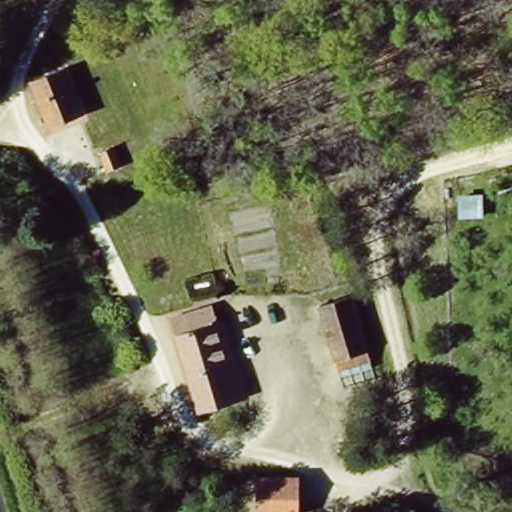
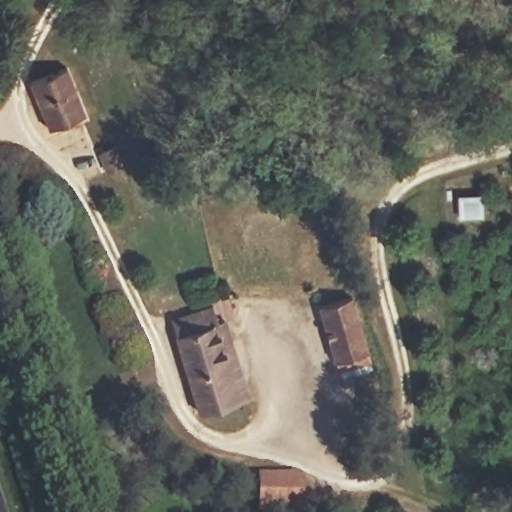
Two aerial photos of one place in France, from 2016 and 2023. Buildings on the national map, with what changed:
unchanged [(74,105),(80,124),(55,132),(37,73),(72,62),(84,102),(74,105)]
unchanged [(230,298),(227,286),(262,282),(267,297),(230,298)]
unchanged [(313,287),(345,287),(365,352),(335,362),(313,287)]
unchanged [(243,391),(237,392),(243,415),(204,425),(174,324),(196,318),(194,303),(217,293),(243,391)]
unchanged [(309,507),(257,510),(255,486),(307,483),(309,507)]

